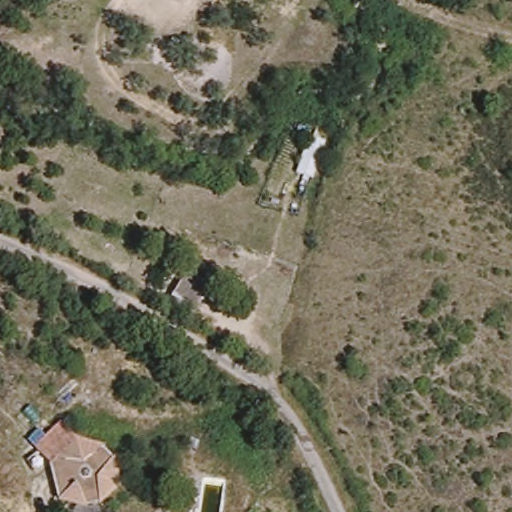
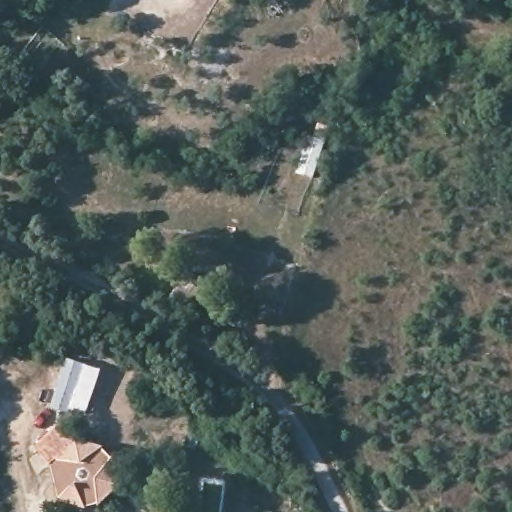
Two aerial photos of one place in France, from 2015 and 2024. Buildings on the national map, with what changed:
unchanged [(324,175),(309,170),(319,133),(332,137),(324,175)]
unchanged [(176,291),(185,275),(208,287),(199,305),(176,291)]
new [(102,369),(87,415),(70,410),(70,412),(53,407),(68,358),(102,369)]
unchanged [(62,498),(53,458),(40,444),(65,420),(80,437),(108,445),(114,447),(120,453),(122,461),(127,485),(104,506),(85,505),(62,498)]

